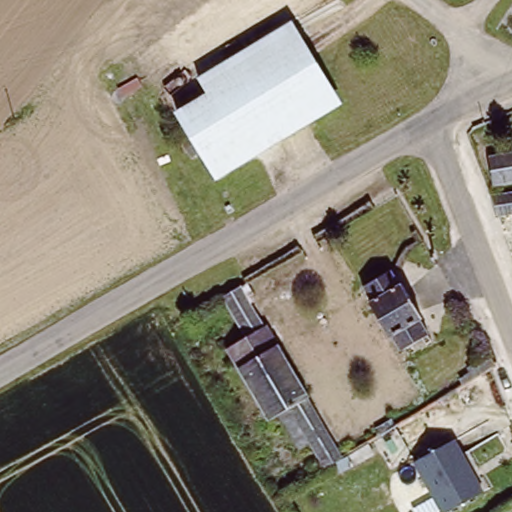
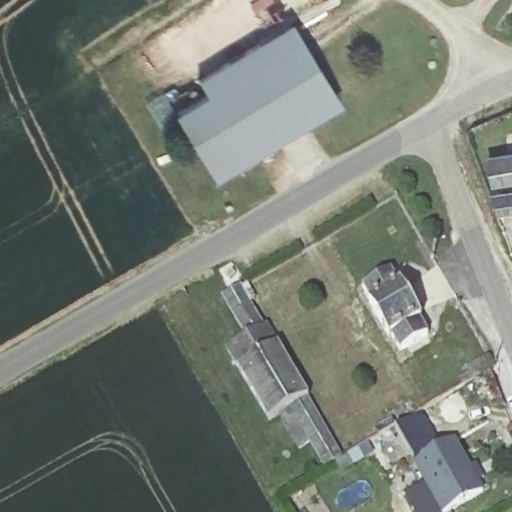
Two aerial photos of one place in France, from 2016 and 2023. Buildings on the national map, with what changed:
unchanged [(301,17),(346,100),(211,177),(166,95),(301,17)]
unchanged [(512,152),(512,178),(490,182),(486,156),(512,152)]
unchanged [(494,214),(486,192),(510,190),(512,199),(512,212),(494,214)]
unchanged [(290,258),(269,270),(264,262),(286,250),(290,258)]
unchanged [(422,310),(414,315),(426,334),(396,352),(384,335),(379,337),(353,294),(359,290),(355,283),(384,265),(389,272),(395,268),(422,310)]
unchanged [(259,326),(241,337),(216,296),(234,285),(259,326)]
unchanged [(316,410),(294,423),(309,448),(297,456),(272,416),(269,418),(225,347),(241,337),(259,326),(263,323),(316,410)]
unchanged [(316,410),(349,464),(328,477),(309,448),(294,423),(316,410)]
unchanged [(397,430),(377,442),(371,432),(391,420),(397,430)]
unchanged [(475,491),(442,512),(411,463),(445,441),(475,491)]

